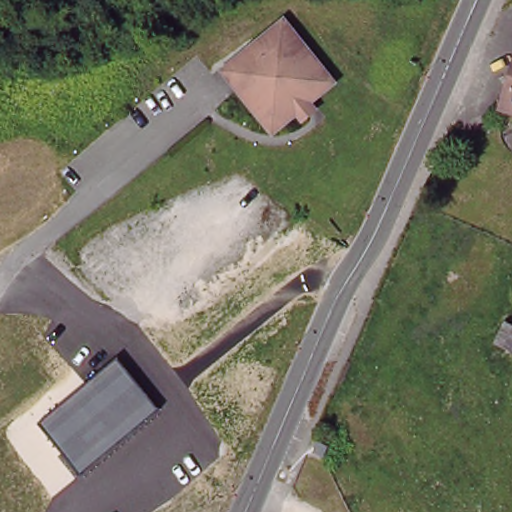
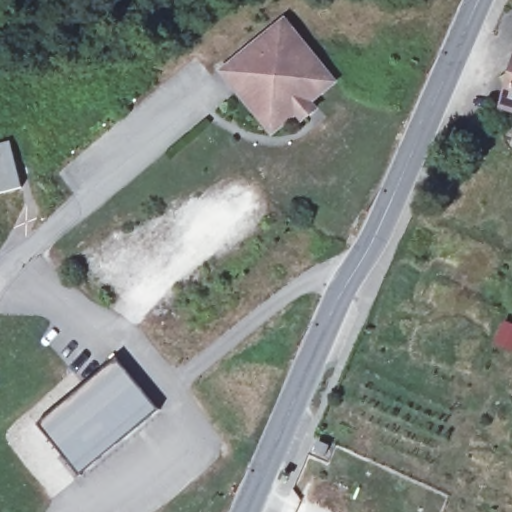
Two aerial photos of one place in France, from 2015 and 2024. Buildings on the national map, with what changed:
unchanged [(266,120),(232,81),(223,70),(232,63),(272,29),(285,18),(294,29),(328,71),(336,81),(326,90),(315,99),(322,110),(307,120),(299,112),(290,121),(277,132),(266,120)]
unchanged [(512,53),(512,104),(499,100),(512,53)]
new [(9,141),(22,187),(0,193),(0,144),(9,141)]
unchanged [(114,360),(156,410),(78,475),(36,424),(114,360)]
unchanged [(333,445),(328,455),(317,451),(322,440),(333,445)]

